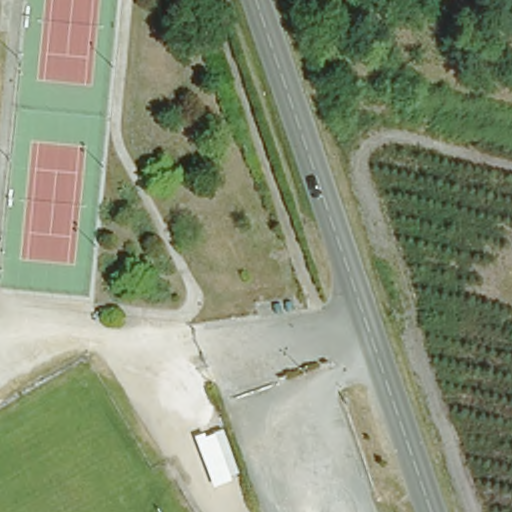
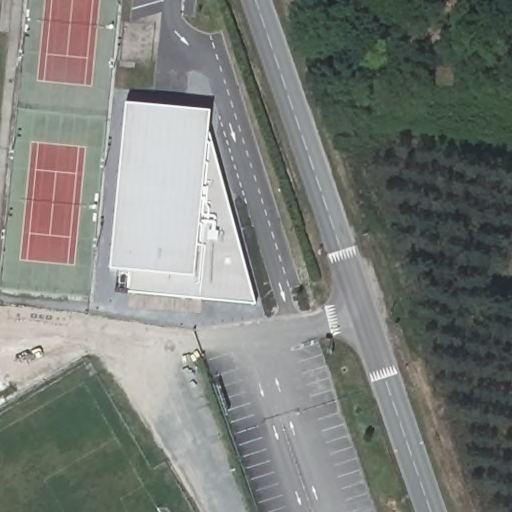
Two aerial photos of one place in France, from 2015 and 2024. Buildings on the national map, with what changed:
new [(128,103),(212,111),(211,127),(259,303),(117,291),(120,269),(113,268),(128,103)]
demolished [(188,397),(178,372),(195,366),(204,392),(188,397)]

